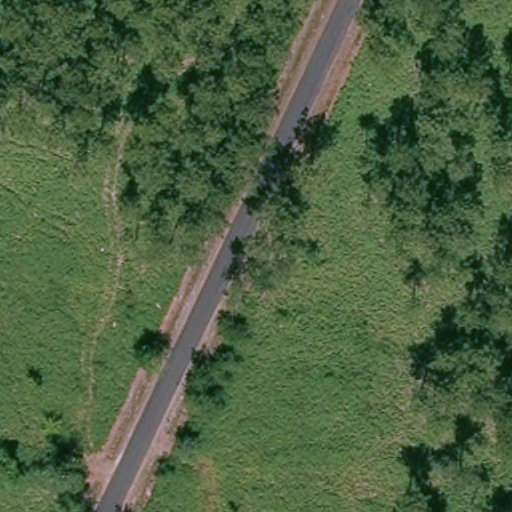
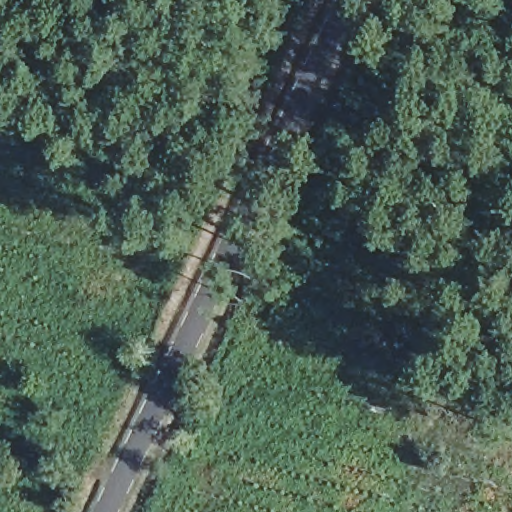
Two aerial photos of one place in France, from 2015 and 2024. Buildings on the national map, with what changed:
[]

